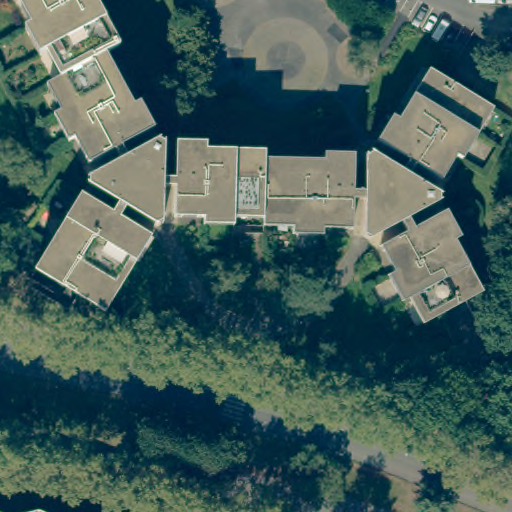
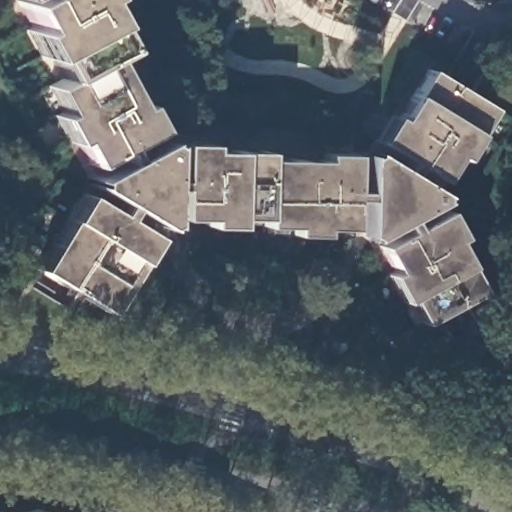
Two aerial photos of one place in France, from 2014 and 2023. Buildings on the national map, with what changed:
unchanged [(126,39),(114,46),(101,52),(53,79),(25,26),(10,0),(104,0),(126,39)]
unchanged [(101,52),(114,46),(140,96),(161,137),(172,138),(187,138),(229,139),(267,140),(267,146),(279,147),(294,148),(323,148),(368,150),(373,141),(380,129),(418,61),(425,65),(443,75),(450,79),(469,91),(491,105),(461,155),(438,191),(446,205),(460,232),(488,283),(467,295),(440,310),(417,322),(390,270),(368,231),(323,230),(256,228),(256,220),(222,219),(205,219),(160,219),(106,306),(78,288),(61,278),(36,263),(82,190),(89,179),(68,140),(38,87),(53,79),(101,52)]
unchanged [(41,503),(61,512),(0,512),(0,505),(12,510),(41,503)]
unchanged [(82,512),(79,512),(81,511),(82,512)]

